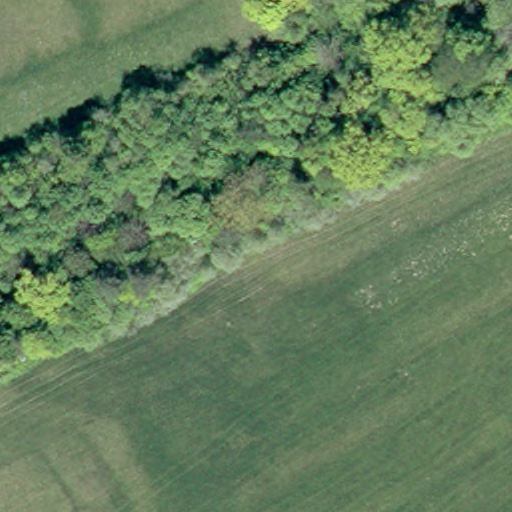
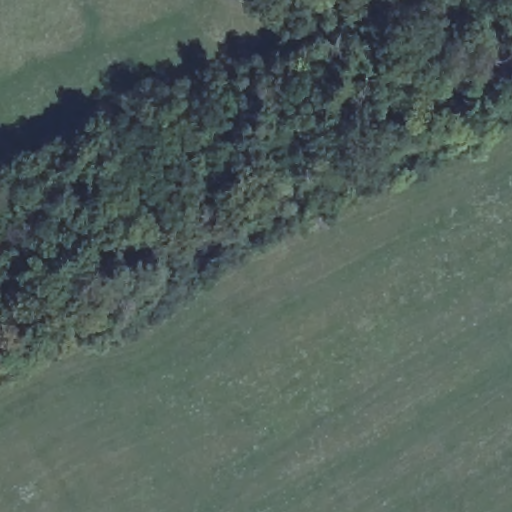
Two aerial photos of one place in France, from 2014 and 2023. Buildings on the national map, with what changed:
[]

